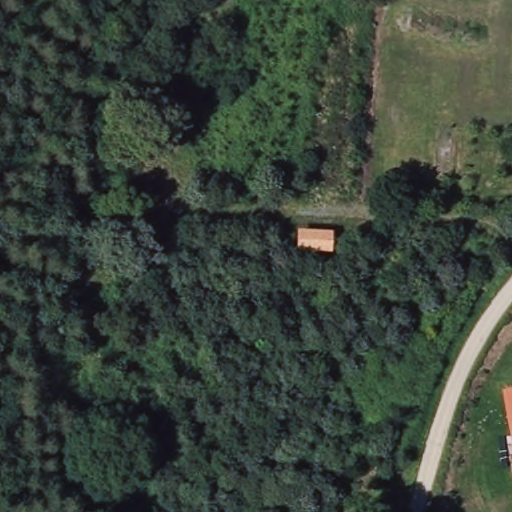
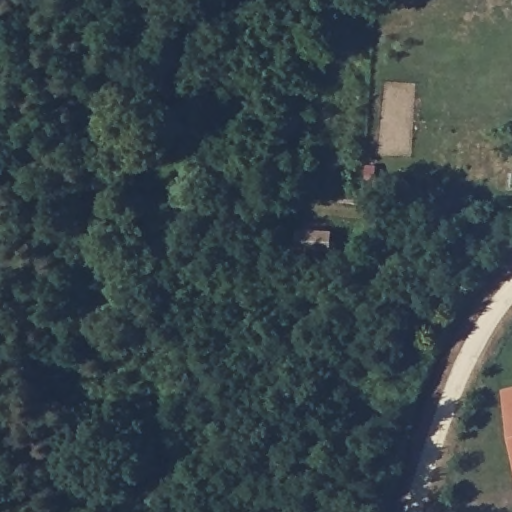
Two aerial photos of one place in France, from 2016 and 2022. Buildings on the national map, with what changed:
unchanged [(512,389),(512,399),(511,390),(512,389)]

